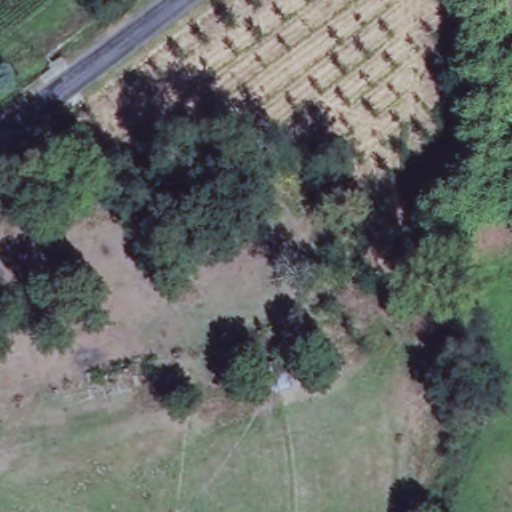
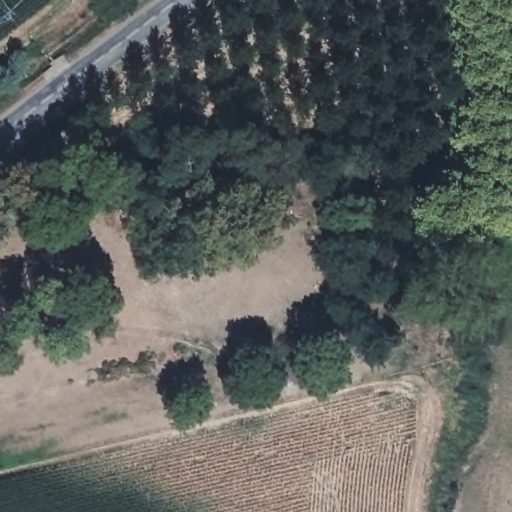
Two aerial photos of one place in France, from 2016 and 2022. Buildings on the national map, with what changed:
unchanged [(265,354),(291,350),(297,386),(258,393),(251,356),(265,354)]

